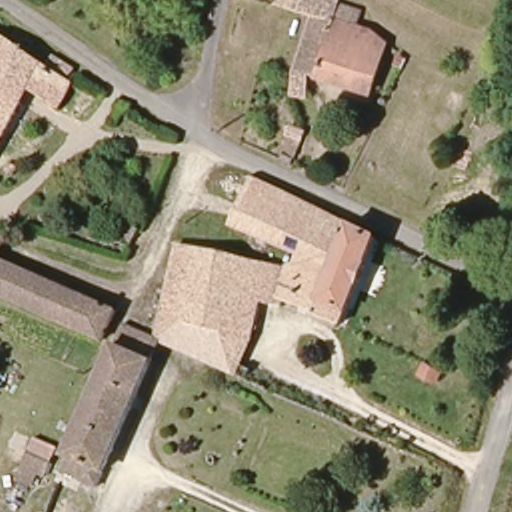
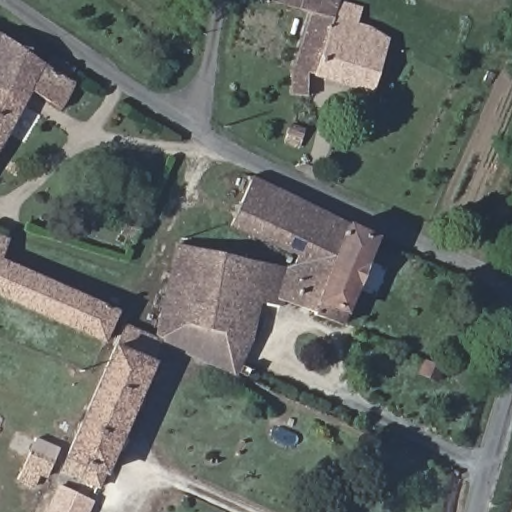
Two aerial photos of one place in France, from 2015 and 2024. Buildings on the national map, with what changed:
unchanged [(290,63),(307,10),(293,5),(278,0),(334,0),(331,11),(366,23),(382,31),(377,46),(365,87),(337,78),(307,69),(303,93),(287,89),(290,63)]
unchanged [(51,54),(74,69),(69,76),(74,80),(59,105),(31,88),(0,140),(0,31),(47,61),(51,54)]
unchanged [(292,125),(304,129),(293,164),(282,159),(292,125)]
unchanged [(263,230),(240,220),(233,235),(192,217),(220,155),(286,184),(263,230)]
unchanged [(263,230),(286,184),(322,202),(301,248),(263,230)]
unchanged [(322,202),(378,229),(343,318),(317,307),(318,304),(290,292),(285,302),(272,295),(288,260),(298,254),(301,248),(322,202)]
unchanged [(114,237),(126,219),(139,228),(127,246),(114,237)]
unchanged [(0,245),(0,233),(5,235),(0,245)]
unchanged [(166,310),(184,235),(192,237),(275,256),(288,260),(272,295),(254,333),(166,310)]
unchanged [(102,340),(0,293),(0,256),(116,309),(102,340)]
unchanged [(237,369),(206,354),(166,336),(167,333),(161,330),(166,310),(254,333),(237,369)]
unchanged [(161,330),(167,333),(166,336),(100,479),(64,462),(129,316),(161,330)]
unchanged [(425,359),(442,368),(436,379),(419,369),(425,359)]
unchanged [(35,446),(55,457),(49,469),(28,458),(35,446)]
new [(89,512),(44,512),(58,484),(94,502),(89,512)]

